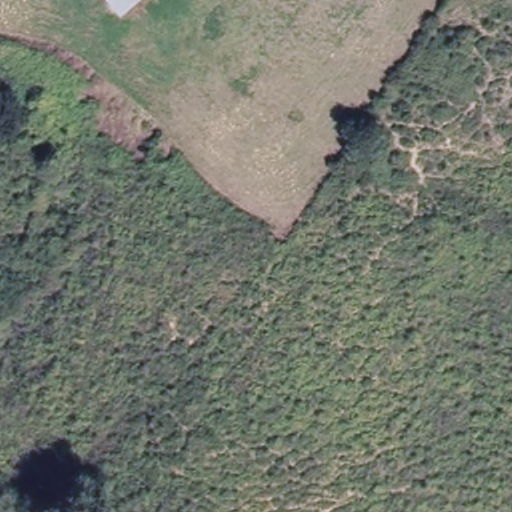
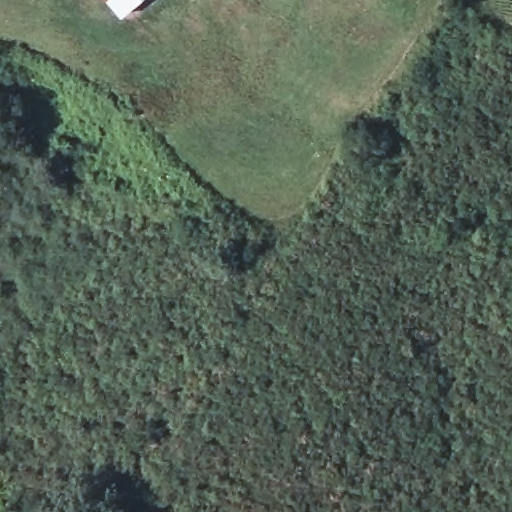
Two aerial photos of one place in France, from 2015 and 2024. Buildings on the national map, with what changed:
unchanged [(115,0),(124,0),(119,5),(115,0)]

